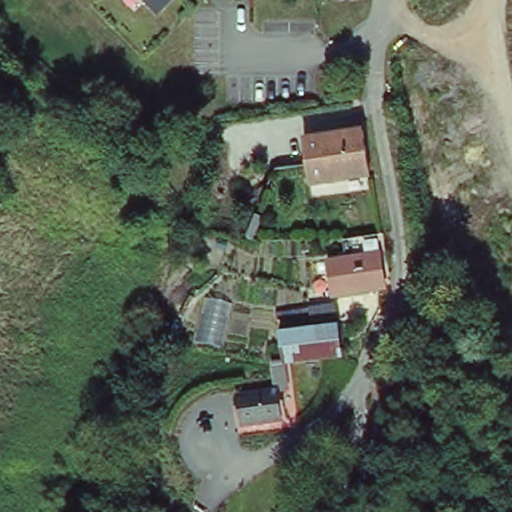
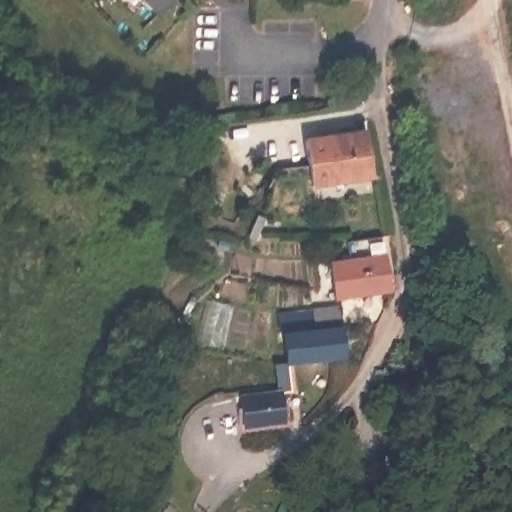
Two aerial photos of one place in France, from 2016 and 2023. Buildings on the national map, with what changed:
unchanged [(134,0),(172,0),(155,18),(134,0)]
unchanged [(311,185),(307,146),(366,139),(372,179),(311,185)]
unchanged [(387,296),(330,300),(327,267),(345,266),(343,245),(380,240),(387,296)]
unchanged [(288,338),(281,339),(279,320),(338,315),(339,335),(288,338)]
unchanged [(291,367),(288,338),(339,335),(342,335),(345,365),(291,367)]
unchanged [(279,394),(276,371),(276,368),(288,368),(291,392),(279,394)]
unchanged [(242,430),(238,401),(279,394),(282,423),(242,430)]

